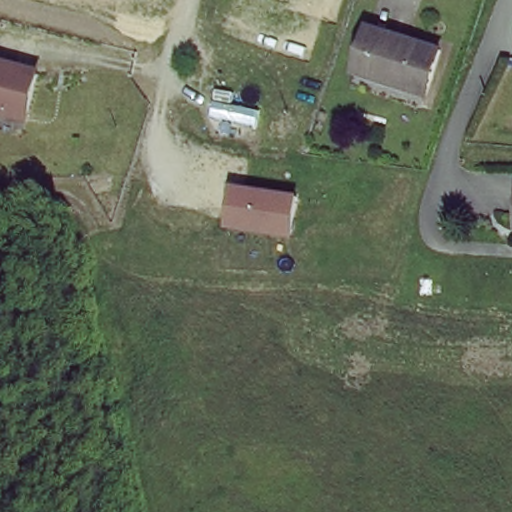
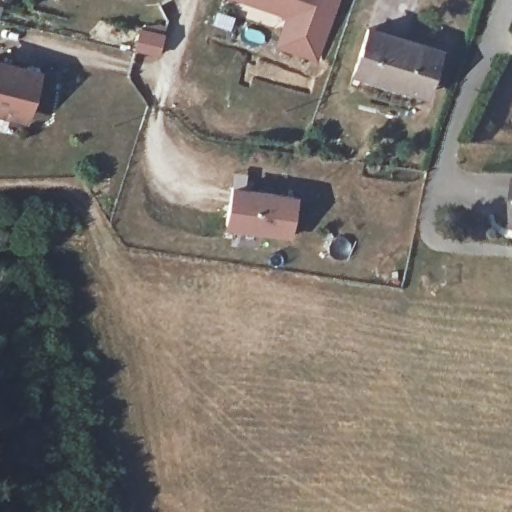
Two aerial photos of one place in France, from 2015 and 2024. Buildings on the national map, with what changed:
new [(279,45),(289,14),(246,0),(336,0),(317,57),(279,45)]
unchanged [(399,83),(357,70),(370,29),(371,26),(441,49),(429,85),(427,92),(399,83)]
unchanged [(40,78),(30,121),(0,112),(0,67),(40,78)]
unchanged [(297,195),(290,236),(225,226),(230,185),(297,195)]

